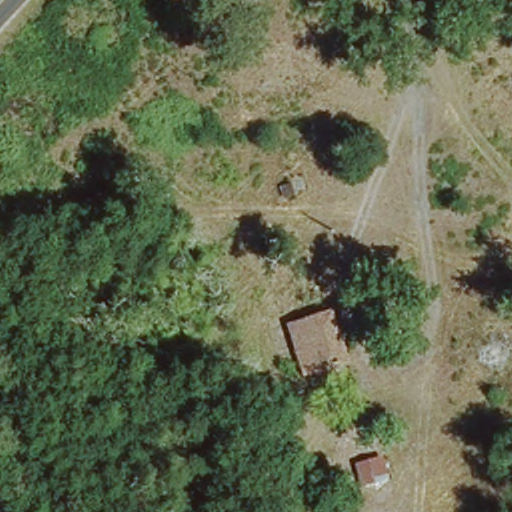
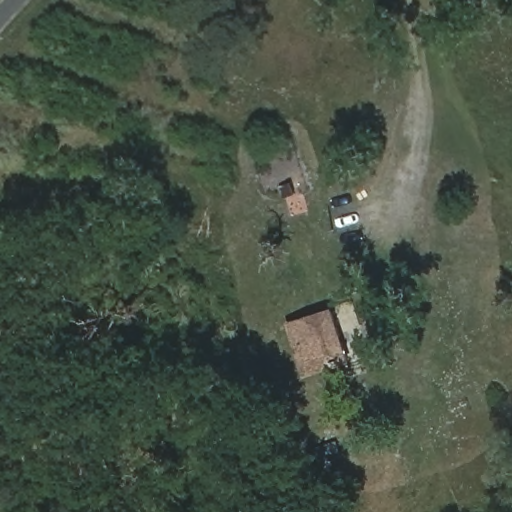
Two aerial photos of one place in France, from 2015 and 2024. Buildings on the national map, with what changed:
unchanged [(338,355),(315,361),(300,364),(288,323),(330,312),(338,355)]
unchanged [(343,479),(333,411),(365,406),(372,447),(380,448),(381,460),(386,458),(388,475),(343,479)]

